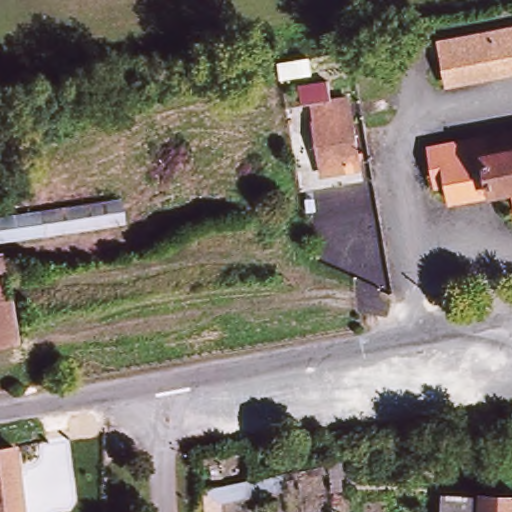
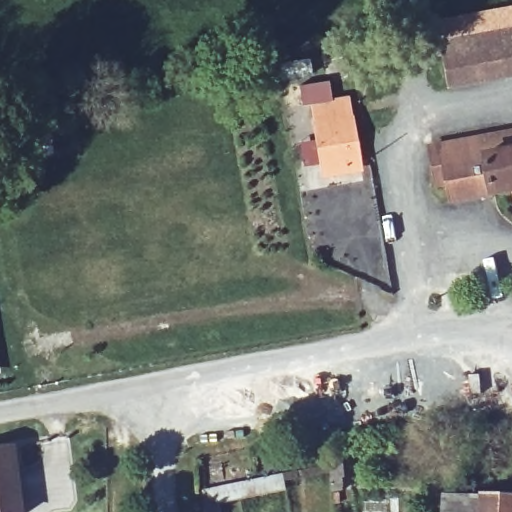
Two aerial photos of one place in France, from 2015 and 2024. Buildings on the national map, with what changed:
unchanged [(502,74),(449,84),(440,41),(512,26),(512,72),(502,74)]
unchanged [(345,165),(320,169),(313,126),(315,126),(312,109),(347,101),(350,120),(352,120),(360,167),(345,170),(345,165)]
unchanged [(435,146),(512,132),(512,191),(455,201),(452,184),(442,185),(435,146)]
demolished [(128,226),(0,245),(0,221),(123,202),(128,226)]
demolished [(15,331),(0,334),(0,283),(6,281),(15,331)]
unchanged [(22,512),(0,512),(0,448),(14,446),(22,512)]
unchanged [(332,491),(329,458),(343,457),(345,478),(341,478),(343,491),(332,491)]
unchanged [(283,479),(286,491),(223,507),(223,512),(208,512),(206,493),(283,479)]
unchanged [(487,502),(487,500),(512,501),(512,512),(449,512),(449,500),(487,502)]

